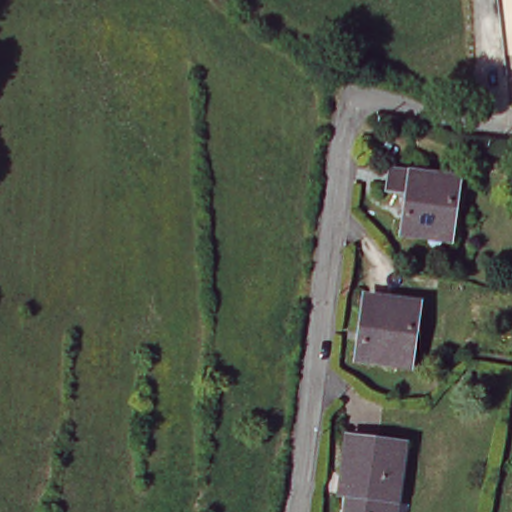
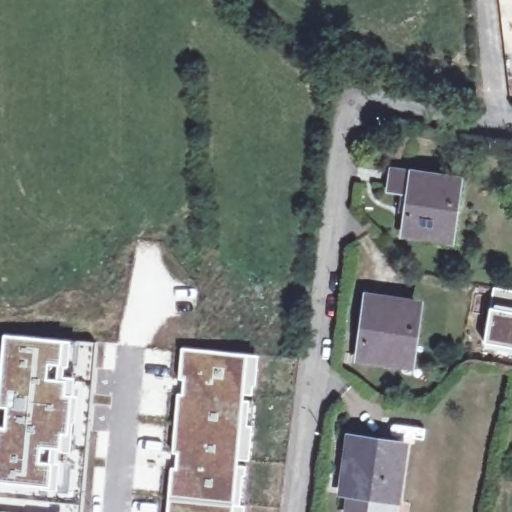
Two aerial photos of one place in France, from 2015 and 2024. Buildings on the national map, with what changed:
unchanged [(430,234),(410,231),(416,192),(393,189),(396,170),(462,179),(456,228),(455,238),(430,234)]
new [(512,344),(483,338),(493,284),(512,287),(512,344)]
unchanged [(386,359),(360,355),(362,337),(366,337),(367,331),(360,330),(366,295),(417,303),(410,353),(408,363),(386,359)]
new [(77,339),(62,512),(0,512),(0,350),(1,333),(77,339)]
new [(245,353),(233,512),(166,512),(169,468),(187,470),(189,454),(170,452),(176,393),(193,394),(195,378),(177,377),(181,347),(245,353)]
unchanged [(350,493),(341,492),(345,470),(350,435),(401,443),(396,477),(400,477),(397,500),(396,512),(348,512),(350,493)]

